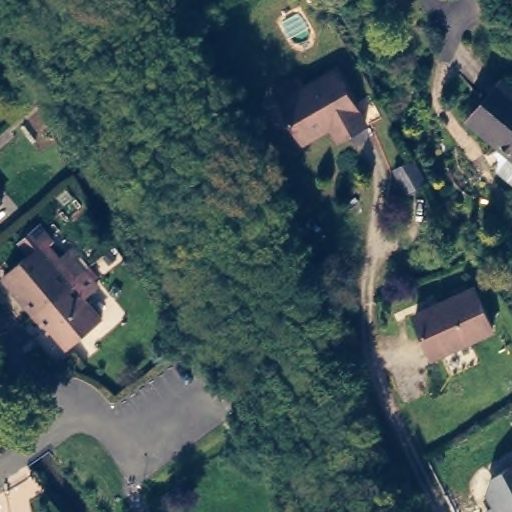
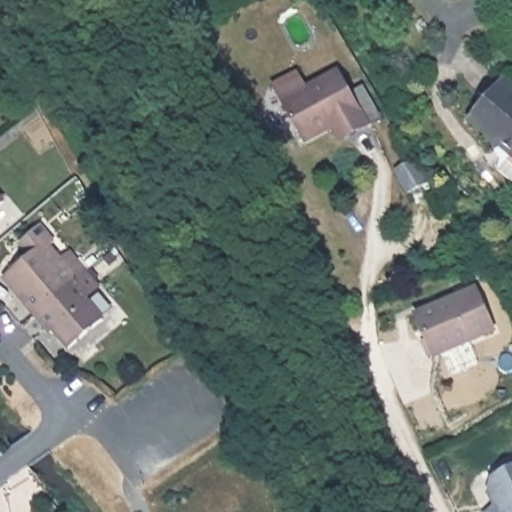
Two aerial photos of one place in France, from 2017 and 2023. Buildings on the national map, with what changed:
unchanged [(365,123),(348,133),(340,120),(305,139),(291,114),(283,100),(292,95),(336,70),(365,123)]
unchanged [(501,81),(512,90),(512,181),(497,169),(500,159),(495,150),(501,145),(470,119),(501,81)]
unchanged [(427,181),(407,192),(394,169),(414,159),(427,181)]
unchanged [(0,201),(0,199),(1,200),(0,201)]
unchanged [(38,310),(24,295),(21,297),(5,277),(30,255),(20,244),(38,228),(50,241),(42,247),(55,262),(67,252),(84,270),(38,310)]
unchanged [(96,286),(85,298),(102,317),(69,347),(54,330),(51,331),(35,313),(38,310),(84,270),(96,286)]
unchanged [(433,355),(415,314),(475,288),(492,329),(433,355)]
unchanged [(502,511),(488,486),(492,472),(512,461),(512,512),(501,512),(502,511)]

